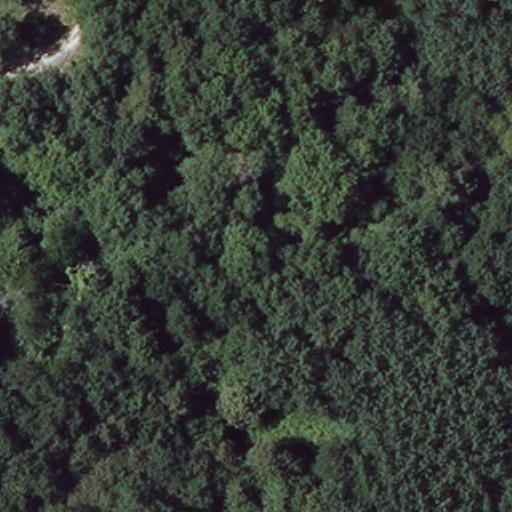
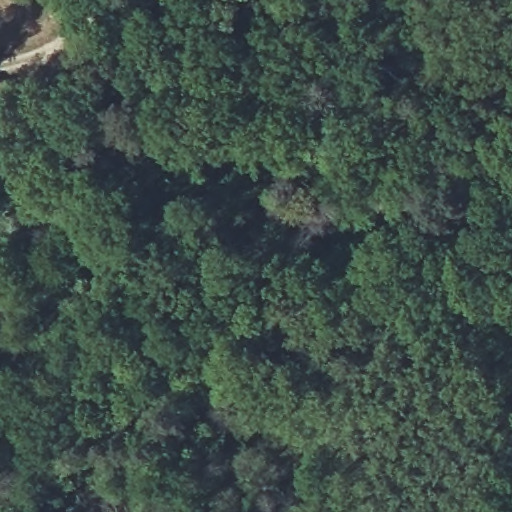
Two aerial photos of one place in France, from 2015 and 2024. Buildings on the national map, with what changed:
unchanged [(133,244),(138,266),(107,273),(103,251),(133,244)]

